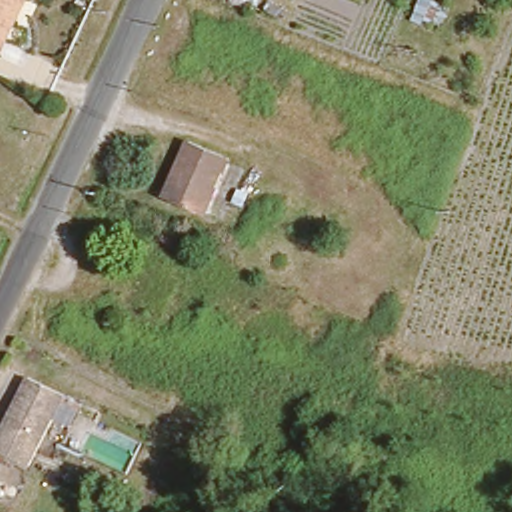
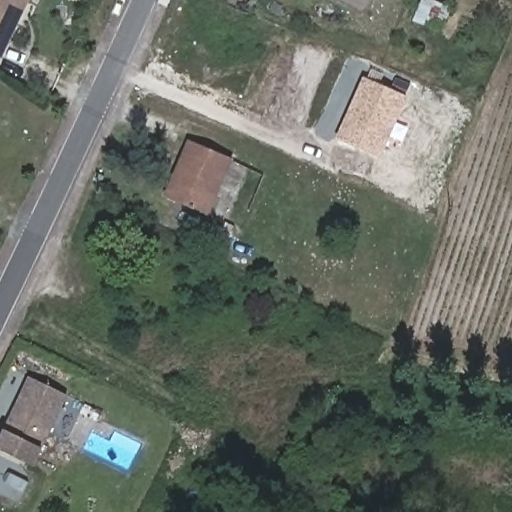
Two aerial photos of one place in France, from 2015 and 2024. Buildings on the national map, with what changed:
unchanged [(1,47),(0,47),(0,0),(25,0),(9,33),(1,47)]
unchanged [(451,2),(441,25),(415,13),(419,0),(447,0),(451,2)]
new [(406,95),(379,158),(335,138),(363,77),(406,95)]
unchanged [(180,160),(191,134),(230,151),(206,210),(176,197),(165,193),(180,160)]
unchanged [(30,468),(0,453),(0,436),(29,378),(66,397),(30,468)]

